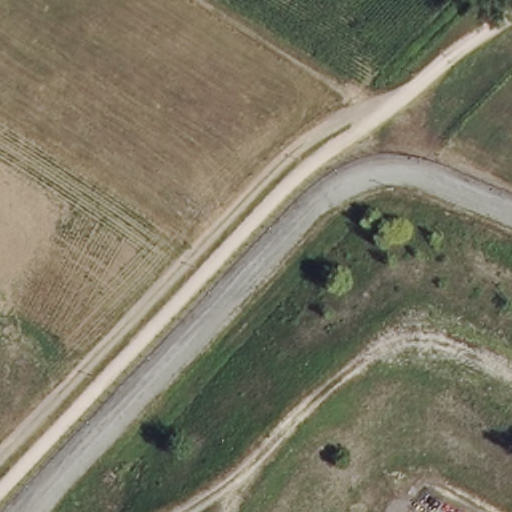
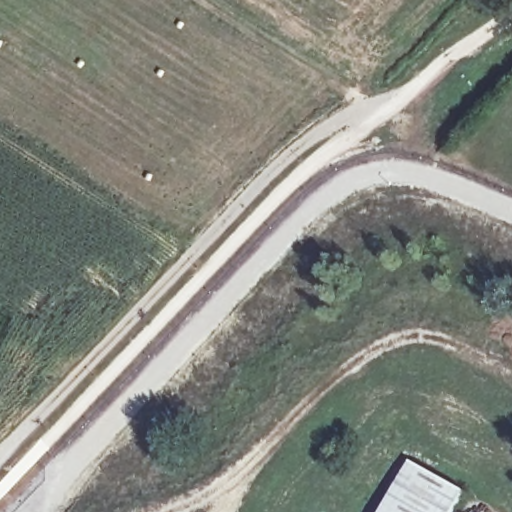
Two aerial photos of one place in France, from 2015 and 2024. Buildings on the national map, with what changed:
new [(380,512),(409,460),(464,491),(452,512),(380,512)]

